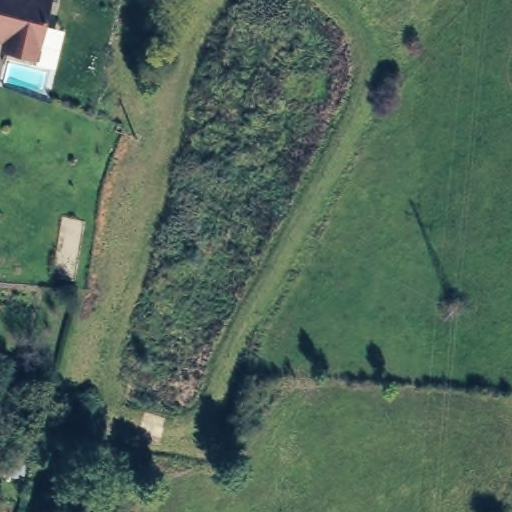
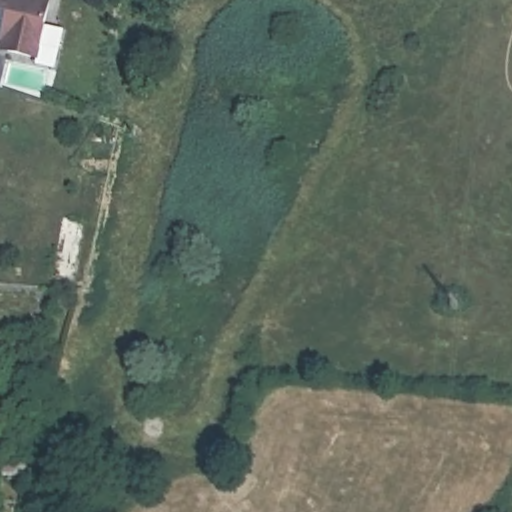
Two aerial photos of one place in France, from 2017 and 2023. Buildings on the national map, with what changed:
unchanged [(37,46),(30,55),(6,49),(3,38),(0,38),(0,0),(48,0),(37,46)]

